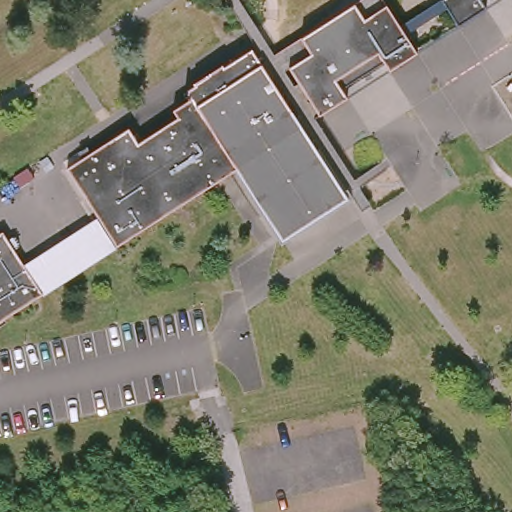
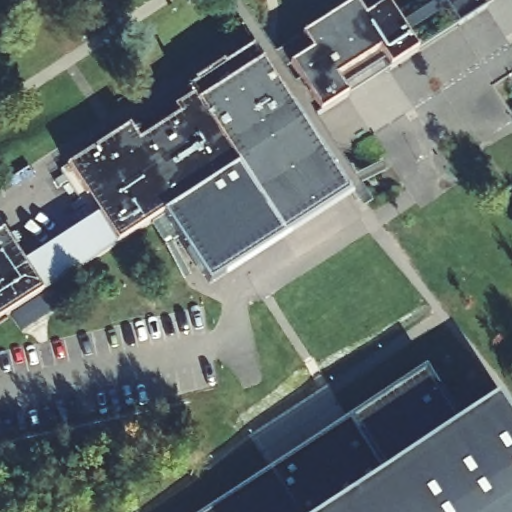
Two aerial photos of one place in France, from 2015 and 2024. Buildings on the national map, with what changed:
unchanged [(395,27),(436,0),(493,0),(452,26),(442,8),(400,35),(411,52),(313,115),(273,52),(355,0),(377,0),(395,27)]
unchanged [(124,128),(133,142),(173,117),(168,110),(187,99),(180,89),(228,57),(245,46),(255,61),(296,127),(230,170),(167,210),(112,245),(62,167),(66,165),(124,128)]
unchanged [(296,127),(343,203),(278,242),(230,170),(296,127)]
new [(208,285),(162,213),(167,210),(230,170),(278,242),(208,285)]
unchanged [(20,265),(87,220),(106,250),(37,293),(0,317),(0,234),(20,265)]
new [(455,428),(495,401),(512,427),(512,512),(206,512),(423,371),(455,428)]

